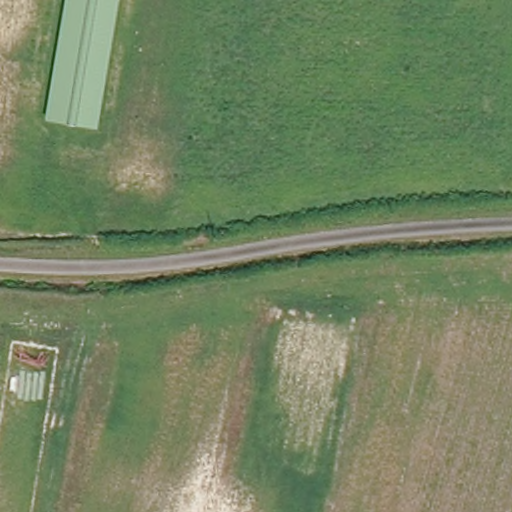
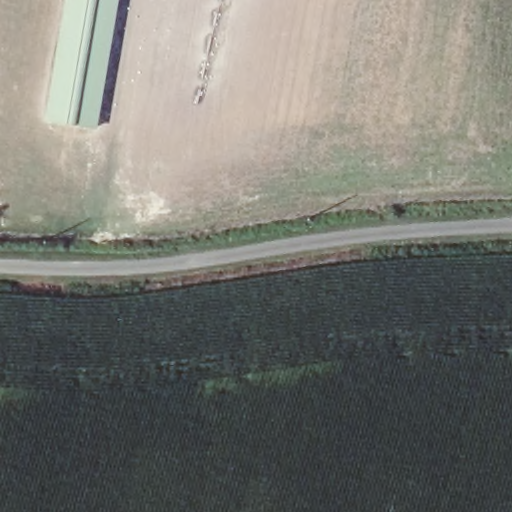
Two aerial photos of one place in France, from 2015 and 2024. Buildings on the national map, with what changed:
unchanged [(44,120),(64,0),(119,0),(99,129),(44,120)]

